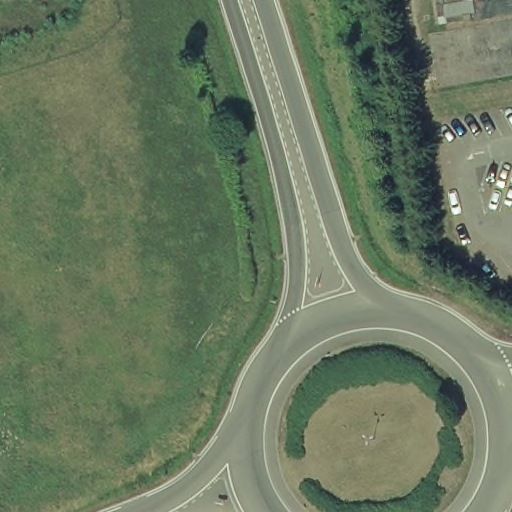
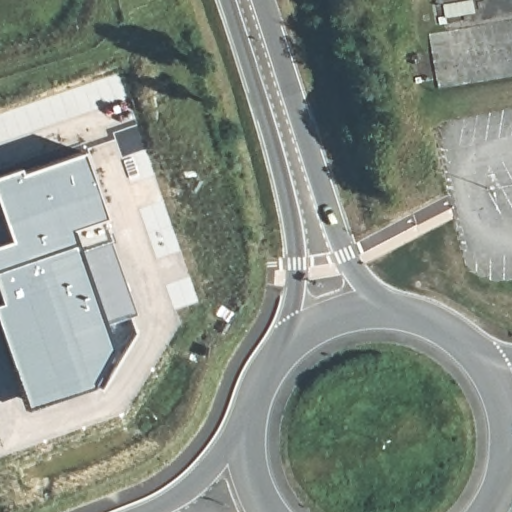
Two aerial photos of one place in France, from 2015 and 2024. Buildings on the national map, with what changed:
new [(60,92),(119,73),(127,97),(8,142),(0,144),(0,113),(60,92)]
new [(138,124),(146,150),(123,157),(114,132),(138,124)]
new [(7,239),(0,220),(0,173),(18,167),(20,171),(81,150),(110,239),(137,315),(102,327),(108,346),(90,377),(87,385),(22,407),(0,344),(0,242),(7,239)]
new [(7,239),(0,242),(0,220),(7,239)]

